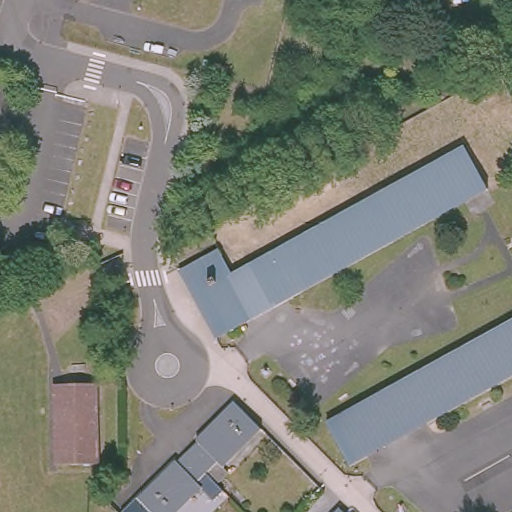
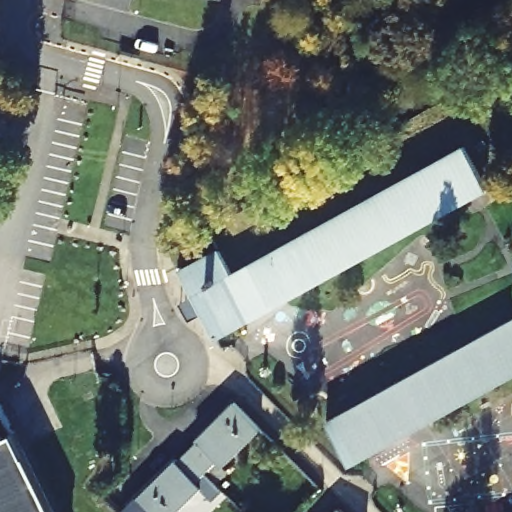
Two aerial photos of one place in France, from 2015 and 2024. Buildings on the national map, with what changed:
unchanged [(188,290),(178,271),(218,250),(231,275),(464,147),(484,187),(213,335),(196,302),(188,290)]
unchanged [(489,333),(512,320),(512,371),(424,420),(402,381),(489,333)]
unchanged [(364,452),(351,430),(367,421),(358,405),(402,381),(424,420),(364,452)]
demolished [(58,382),(98,382),(98,462),(58,462),(58,382)]
unchanged [(198,439),(196,437),(235,398),(261,425),(222,463),(218,460),(208,470),(188,449),(198,439)]
unchanged [(351,430),(364,452),(347,462),(326,423),(358,405),(367,421),(351,430)]
new [(0,512),(0,409),(52,512),(0,512)]
unchanged [(129,503),(175,457),(178,459),(188,449),(208,470),(226,488),(215,500),(201,485),(173,512),(123,512),(121,511),(129,503)]
unchanged [(337,512),(331,512),(334,509),(337,512)]

